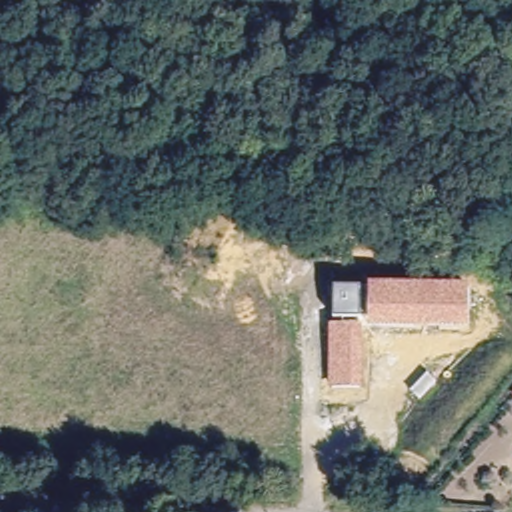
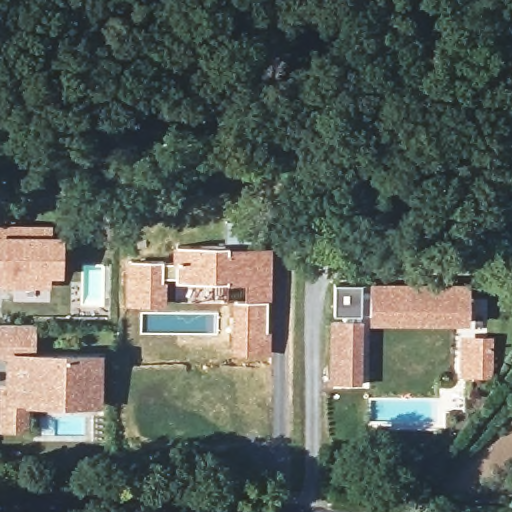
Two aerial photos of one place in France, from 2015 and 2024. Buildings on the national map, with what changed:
new [(0,218),(60,220),(62,292),(0,289),(0,218)]
new [(176,291),(185,291),(185,284),(175,284),(174,277),(172,261),(172,244),(220,244),(272,246),(272,301),(268,301),(271,358),(229,357),(229,300),(177,300),(176,291)]
new [(124,260),(172,261),(174,277),(165,277),(166,305),(124,305),(124,260)]
unchanged [(368,285),(368,280),(470,281),(470,325),(368,323),(368,315),(360,315),(359,322),(363,322),(363,386),(328,385),(329,320),(342,320),(342,315),(333,315),(333,283),(368,285)]
new [(30,434),(0,433),(0,383),(6,383),(7,359),(0,359),(0,322),(35,323),(35,353),(80,356),(102,355),(102,410),(30,406),(30,434)]
new [(459,337),(493,336),(492,378),(458,378),(459,337)]

